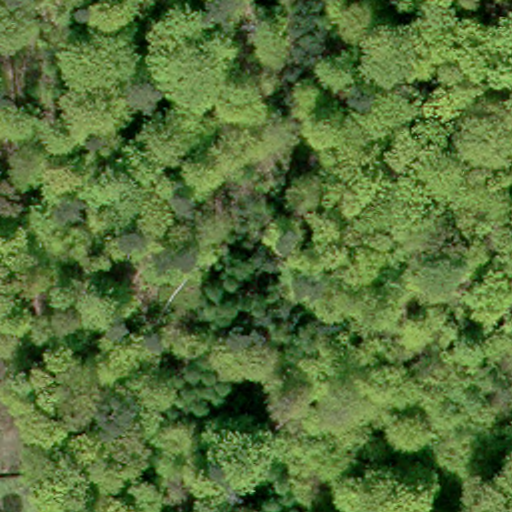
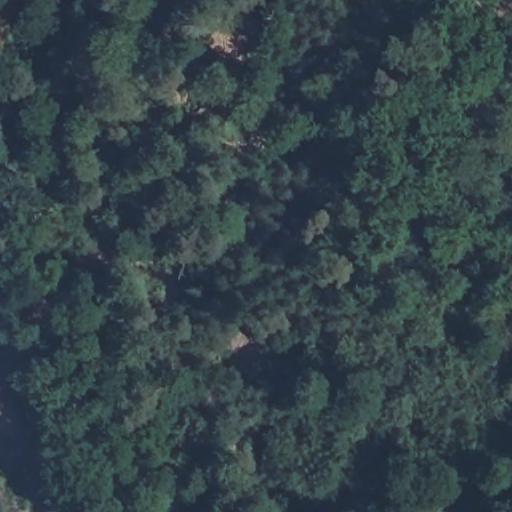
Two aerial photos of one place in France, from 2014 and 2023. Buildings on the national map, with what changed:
unchanged [(63,495),(69,512),(55,512),(51,498),(63,495)]

